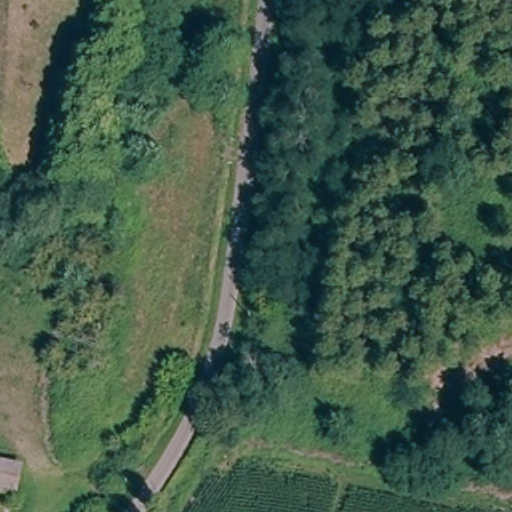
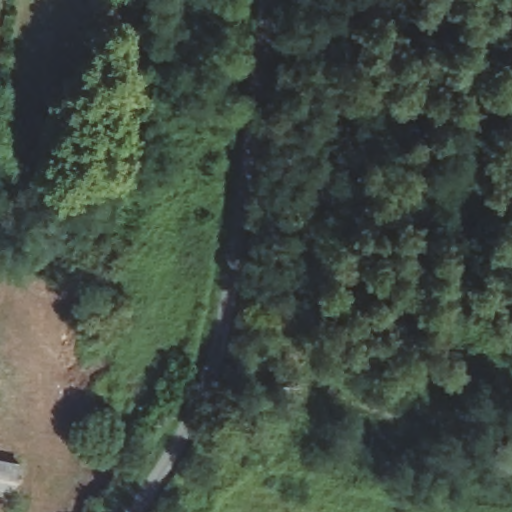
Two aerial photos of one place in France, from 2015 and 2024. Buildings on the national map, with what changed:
unchanged [(15,495),(0,492),(0,462),(19,466),(15,495)]

